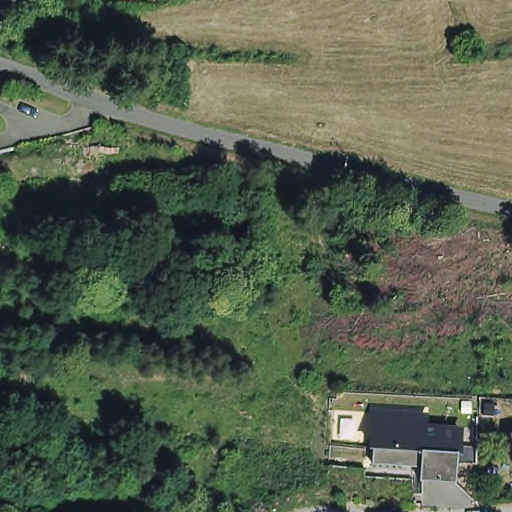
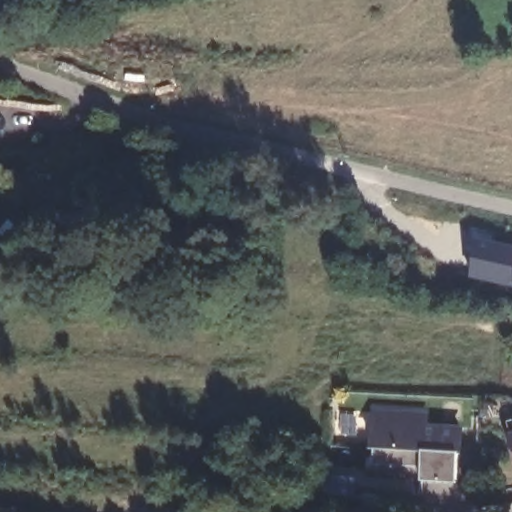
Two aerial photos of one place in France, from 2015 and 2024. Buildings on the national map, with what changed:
demolished [(132,0),(141,0),(134,2),(132,0)]
new [(512,246),(512,287),(469,278),(478,239),(512,246)]
unchanged [(372,467),(375,416),(425,418),(424,430),(459,433),(456,486),(419,483),(420,470),(412,470),(372,467)]
unchanged [(512,438),(512,447),(510,438),(512,438)]

